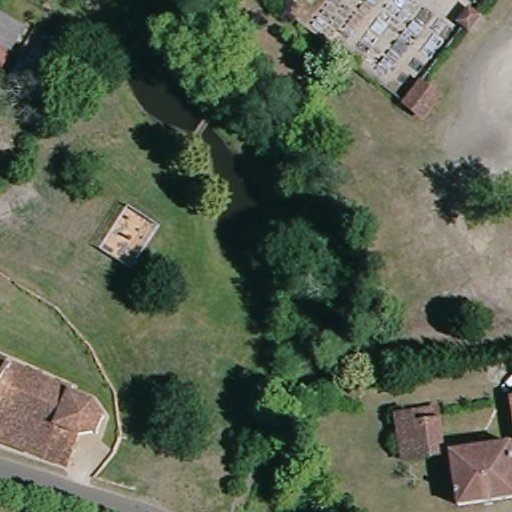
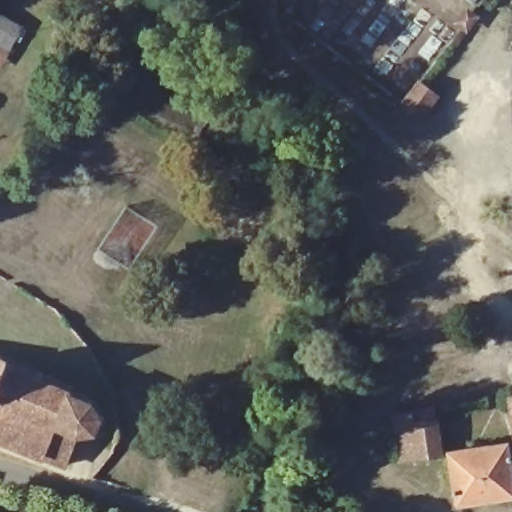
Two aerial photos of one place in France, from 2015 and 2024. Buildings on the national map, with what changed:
unchanged [(0,43),(0,22),(10,27),(0,43)]
unchanged [(440,95),(425,118),(406,103),(423,81),(440,95)]
unchanged [(1,359),(4,353),(12,357),(10,362),(49,379),(52,371),(59,375),(56,381),(81,394),(85,386),(92,389),(90,394),(102,419),(96,435),(77,440),(66,468),(0,442),(0,359),(1,359)]
unchanged [(512,394),(512,416),(507,395),(512,394)]
unchanged [(435,406),(440,448),(400,454),(395,409),(435,406)]
unchanged [(507,439),(512,467),(512,495),(456,503),(448,447),(507,439)]

